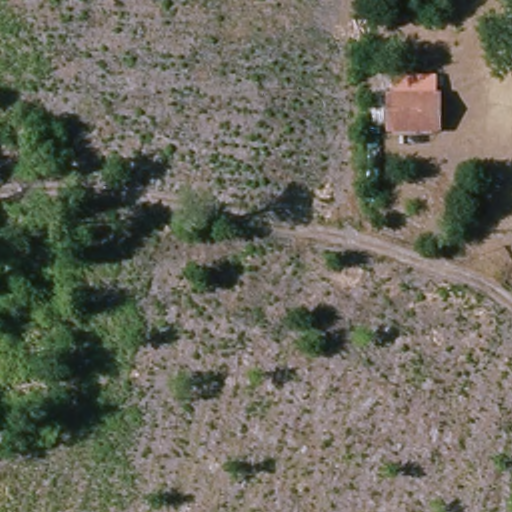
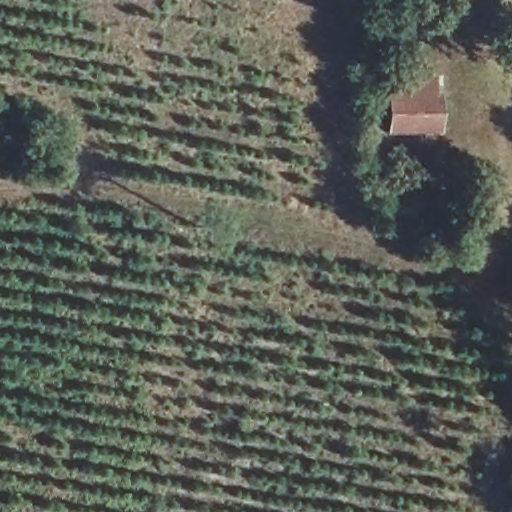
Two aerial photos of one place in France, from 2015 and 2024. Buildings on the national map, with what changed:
unchanged [(445,95),(444,127),(393,127),(393,95),(445,95)]

